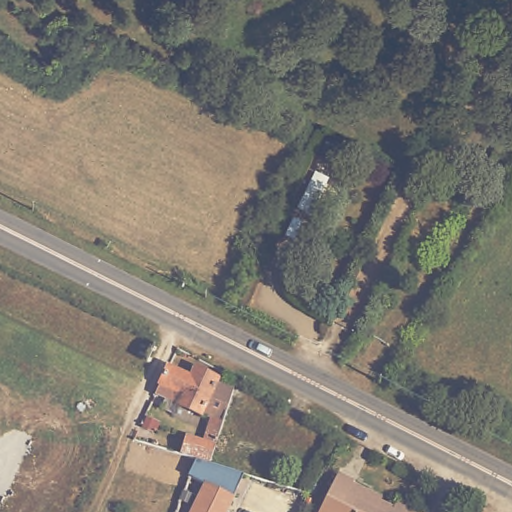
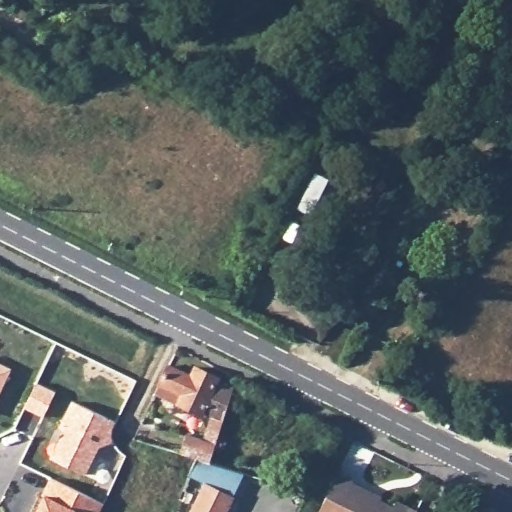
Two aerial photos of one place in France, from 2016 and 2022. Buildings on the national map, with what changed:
new [(0,394),(0,363),(12,369),(0,394)]
unchanged [(168,366),(191,377),(195,368),(218,378),(217,381),(234,389),(210,463),(196,459),(194,459),(182,455),(188,435),(204,440),(210,418),(201,413),(200,415),(155,393),(168,366)]
new [(36,383),(55,393),(43,417),(24,408),(36,383)]
new [(60,438),(65,434),(60,426),(72,401),(116,423),(113,430),(112,436),(113,443),(99,447),(98,447),(85,475),(50,458),(60,438)]
unchanged [(354,480),(350,486),(394,508),(396,502),(415,512),(318,512),(338,473),(354,480)]
unchanged [(104,504),(100,512),(37,512),(45,496),(43,495),(51,480),(104,504)]
unchanged [(236,499),(229,512),(188,512),(203,483),(236,499)]

